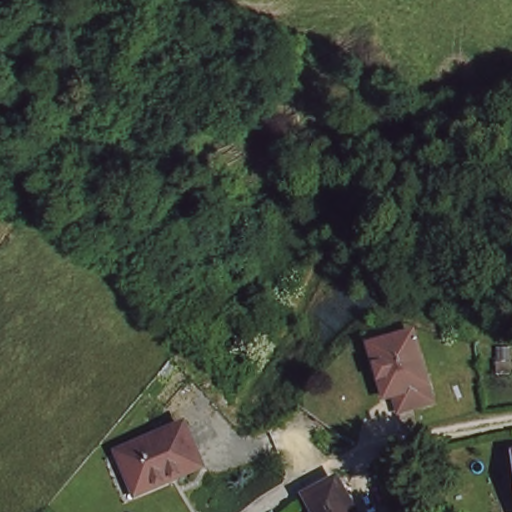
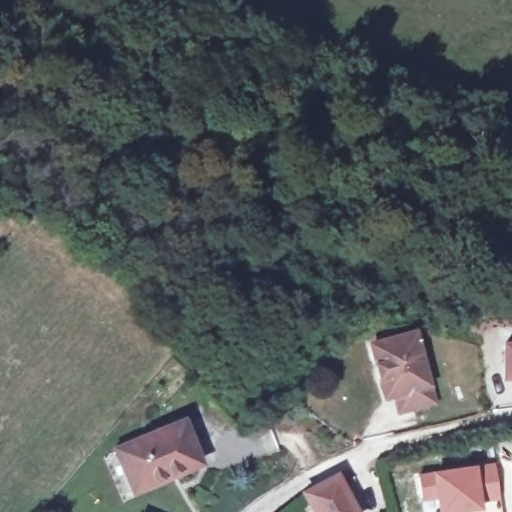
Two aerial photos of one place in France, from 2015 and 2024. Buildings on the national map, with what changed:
unchanged [(414,336),(436,403),(402,413),(397,397),(388,400),(371,348),(414,336)]
new [(512,342),(512,382),(501,382),(501,342),(512,342)]
unchanged [(196,470),(130,497),(113,455),(181,427),(196,470)]
new [(502,501),(484,505),(484,510),(472,512),(437,512),(434,501),(421,503),(417,475),(495,462),(502,501)]
unchanged [(316,512),(307,497),(334,481),(352,512),(316,512)]

